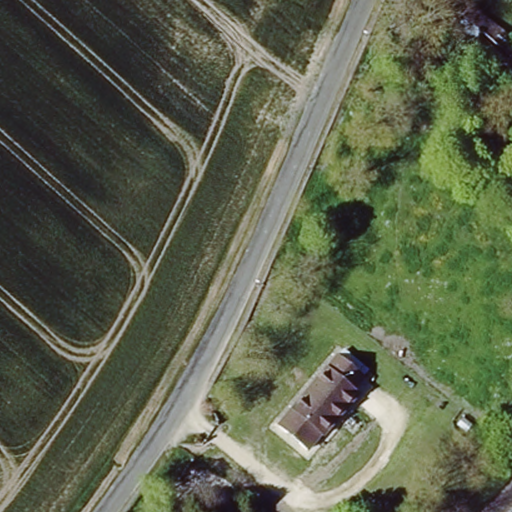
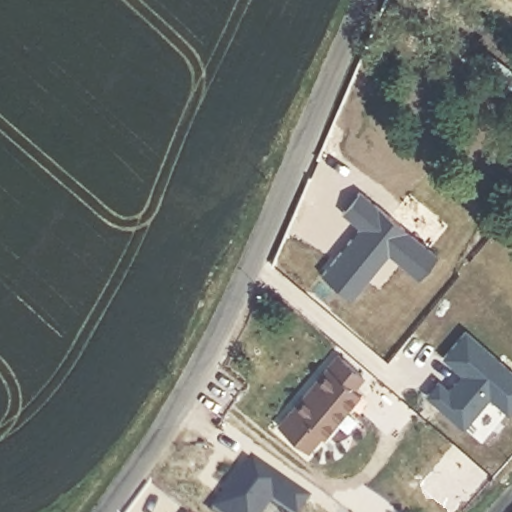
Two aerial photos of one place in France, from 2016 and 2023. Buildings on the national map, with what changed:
unchanged [(512,55),(464,16),(473,6),(512,38),(512,55)]
new [(337,249),(339,250),(346,243),(344,241),(356,225),(339,210),(356,189),(434,253),(416,276),(386,251),(346,295),(318,272),(337,249)]
new [(449,386),(461,371),(443,357),(467,328),(512,368),(512,405),(507,410),(487,393),(462,424),(425,394),(439,377),(449,386)]
unchanged [(366,372),(357,387),(366,394),(331,438),(326,434),(311,450),(281,422),(341,351),(366,372)]
new [(302,512),(289,512),(274,501),(266,512),(219,512),(215,509),(253,456),(311,499),(302,512)]

